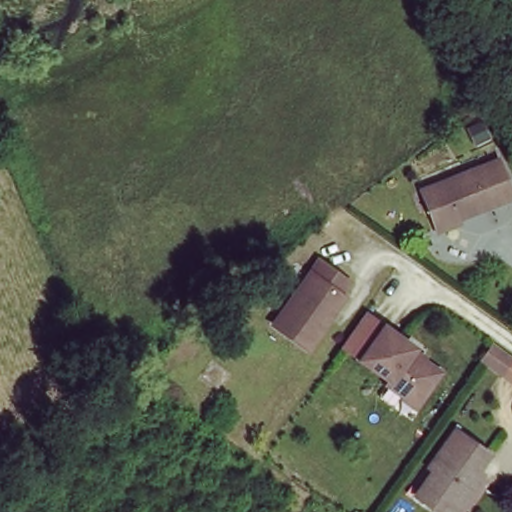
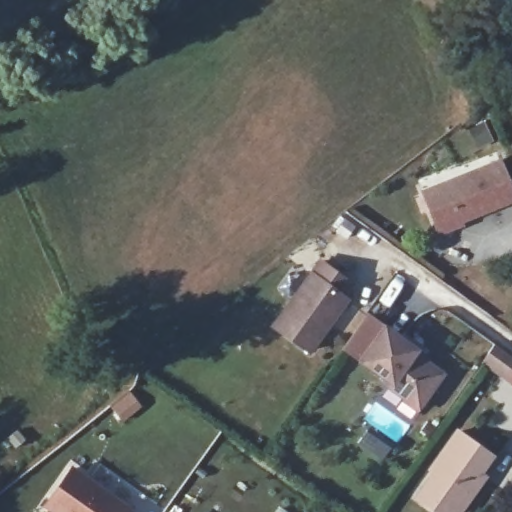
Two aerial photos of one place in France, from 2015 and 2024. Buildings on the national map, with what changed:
unchanged [(427,196),(505,167),(512,188),(512,206),(441,232),(427,196)]
unchanged [(272,317),(318,253),(348,274),(340,287),(345,290),(307,342),(272,317)]
unchanged [(397,377),(348,345),(373,311),(421,342),(417,348),(448,372),(426,403),(393,383),(397,377)]
unchanged [(512,353),(512,369),(508,375),(486,360),(498,343),(512,353)]
unchanged [(440,478),(435,474),(458,440),(492,461),(479,479),(485,485),(465,512),(435,512),(423,502),(440,478)]
new [(72,466),(133,508),(130,512),(52,512),(43,506),(72,466)]

